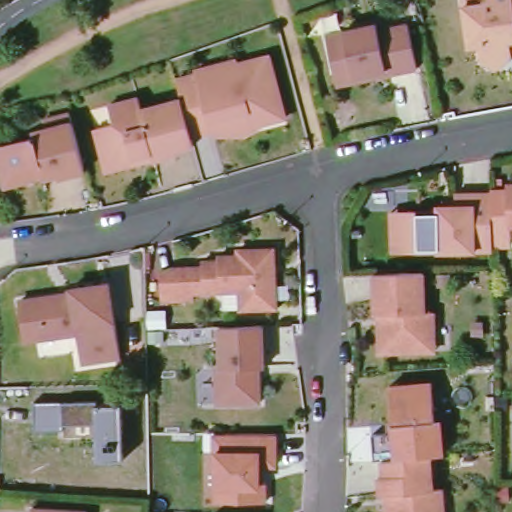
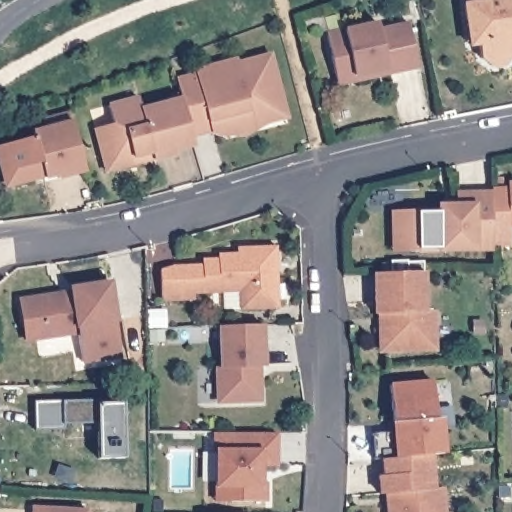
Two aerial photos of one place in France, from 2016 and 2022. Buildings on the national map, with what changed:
unchanged [(505,61),(492,63),(482,55),(480,39),(470,41),(468,22),(465,1),(464,0),(512,0),(512,52),(505,61)]
unchanged [(334,74),(324,39),(374,25),(376,32),(405,24),(417,68),(387,76),(337,89),(334,74)]
unchanged [(219,134),(212,130),(192,136),(182,98),(177,80),(197,75),(195,71),(237,60),(239,64),(270,55),(285,117),(267,122),(245,134),(219,134)]
unchanged [(100,148),(95,129),(114,124),(109,105),(139,97),(142,109),(182,98),(192,136),(194,145),(175,150),(177,154),(155,160),(145,161),(117,168),(107,171),(100,148)]
unchanged [(34,141),(33,136),(46,133),(44,124),(70,117),(85,176),(60,183),(59,180),(46,183),(45,181),(14,190),(3,180),(0,169),(0,150),(6,149),(34,141)]
unchanged [(397,209),(415,209),(425,209),(445,209),(449,205),(449,204),(462,204),(462,192),(497,192),(498,248),(450,248),(425,248),(415,249),(398,249),(397,209)]
unchanged [(277,307),(240,309),(240,287),(212,288),(212,292),(194,293),(194,299),(161,300),(160,270),(176,270),(176,267),(202,266),(202,260),(218,259),(217,255),(238,254),(238,249),(275,248),(277,307)]
unchanged [(424,351),(389,352),(385,348),(384,327),(384,314),(380,314),(379,273),(427,272),(429,312),(438,311),(439,330),(439,351),(424,351)]
unchanged [(105,286),(120,360),(82,367),(76,338),(42,345),(39,327),(22,331),(17,307),(55,300),(68,298),(67,293),(105,286)]
unchanged [(260,402),(224,403),(217,398),(216,368),(221,368),(220,327),(262,325),(264,367),(260,367),(260,376),(260,402)]
unchanged [(387,459),(387,455),(373,457),(372,432),(390,432),(388,382),(429,381),(434,417),(442,418),(444,453),(434,455),(387,459)]
unchanged [(97,457),(95,423),(61,423),(62,431),(34,431),(34,402),(97,401),(121,402),(122,456),(97,457)]
unchanged [(277,433),(277,467),(261,464),(261,480),(267,483),(267,502),(215,501),(215,487),(215,454),(212,456),(212,434),(277,433)]
unchanged [(392,494),(385,494),(384,476),(389,476),(387,459),(434,455),(437,489),(445,488),(447,512),(393,512),(392,503),(392,494)]
unchanged [(85,509),(85,512),(31,512),(31,507),(85,509)]

